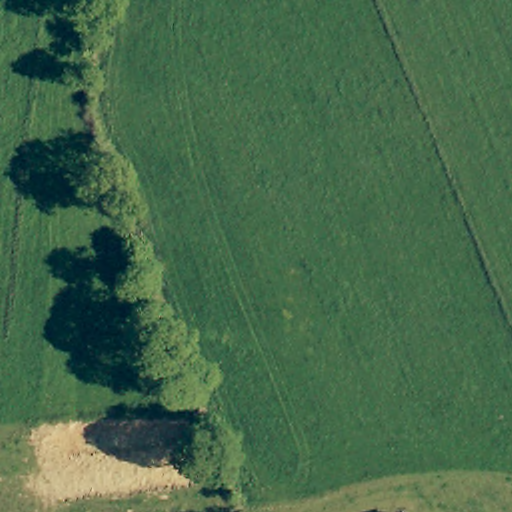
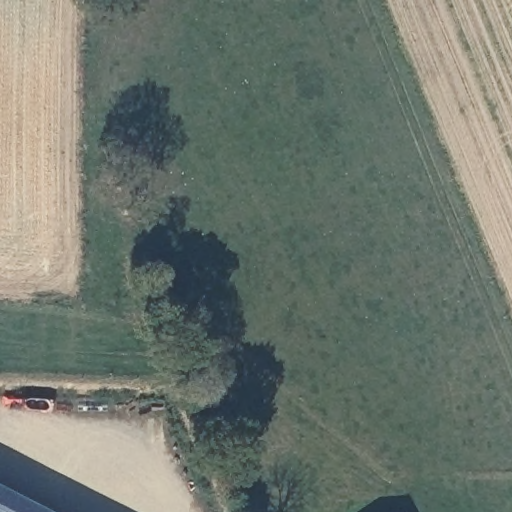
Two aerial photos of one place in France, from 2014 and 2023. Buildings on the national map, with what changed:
new [(0,512),(0,488),(46,512),(0,512)]

